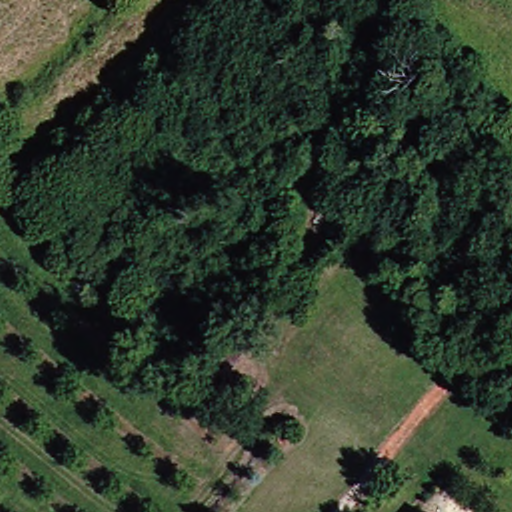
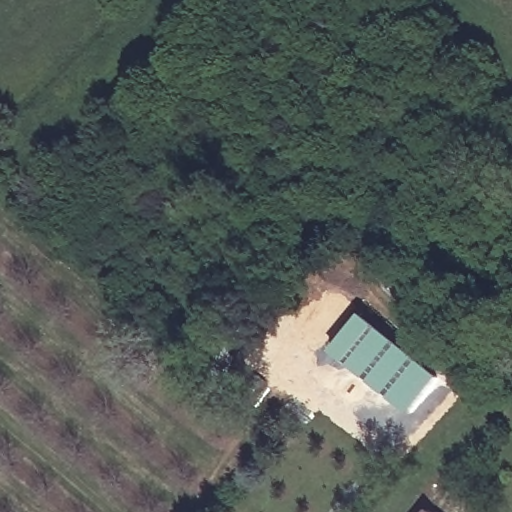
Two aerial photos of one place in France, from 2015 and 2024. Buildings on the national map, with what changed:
new [(364,313),(440,376),(410,413),(334,351),(364,313)]

